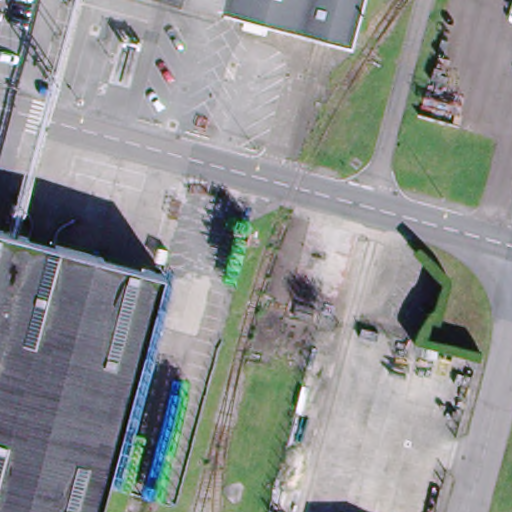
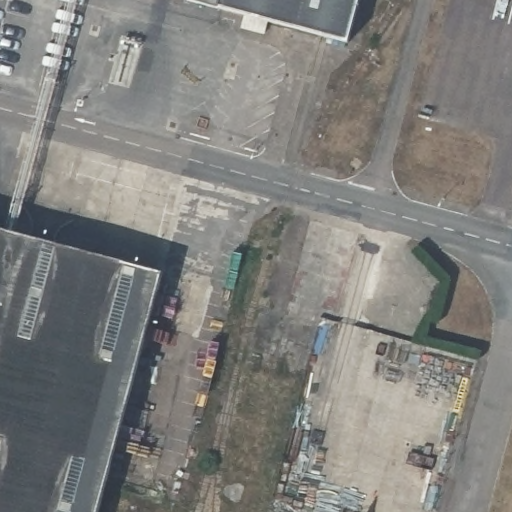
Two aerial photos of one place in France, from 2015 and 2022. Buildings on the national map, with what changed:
unchanged [(246,13),(220,6),(219,11),(177,0),(360,0),(349,41),(269,20),(265,35),(242,28),(246,13)]
unchanged [(99,512),(0,512),(0,231),(163,275),(99,512)]

